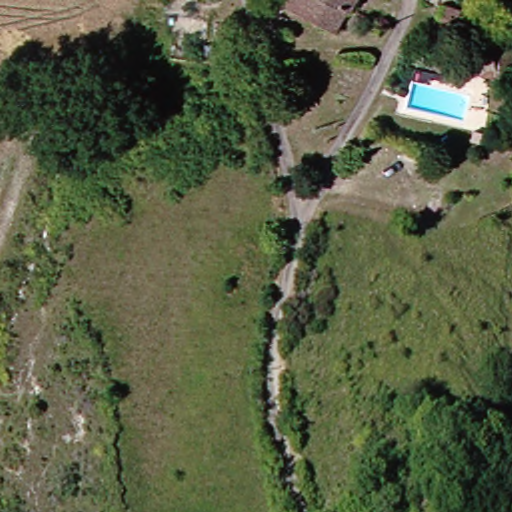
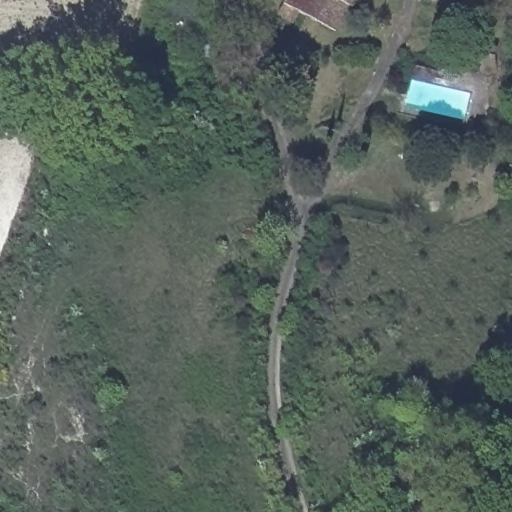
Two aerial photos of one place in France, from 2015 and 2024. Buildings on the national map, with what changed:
unchanged [(224,0),(224,1),(216,0),(224,0)]
unchanged [(270,21),(281,6),(286,0),(343,0),(329,27),(302,16),(291,34),(270,21)]

